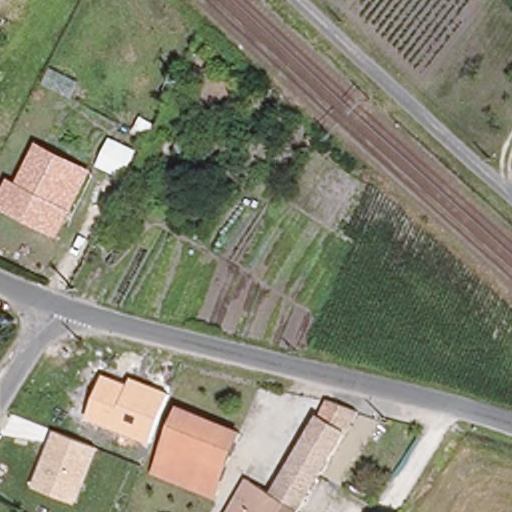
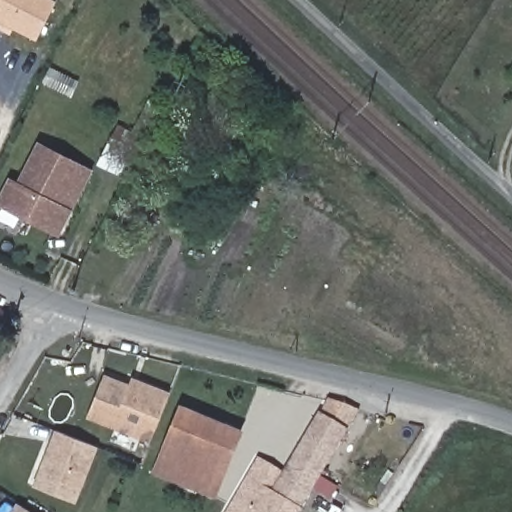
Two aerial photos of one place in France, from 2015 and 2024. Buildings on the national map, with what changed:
new [(35,40),(0,21),(0,0),(55,0),(35,40)]
unchanged [(58,238),(0,208),(0,192),(8,177),(16,181),(37,140),(93,169),(58,238)]
unchanged [(150,445),(84,418),(102,373),(127,383),(129,376),(169,392),(150,445)]
unchanged [(206,490),(154,466),(183,405),(236,428),(206,490)]
unchanged [(298,512),(231,512),(248,483),(273,497),(332,408),(358,415),(298,512)]
unchanged [(76,505),(31,488),(53,431),(98,448),(76,505)]

